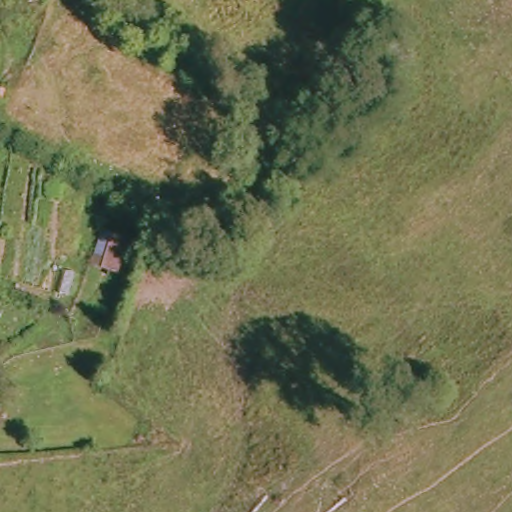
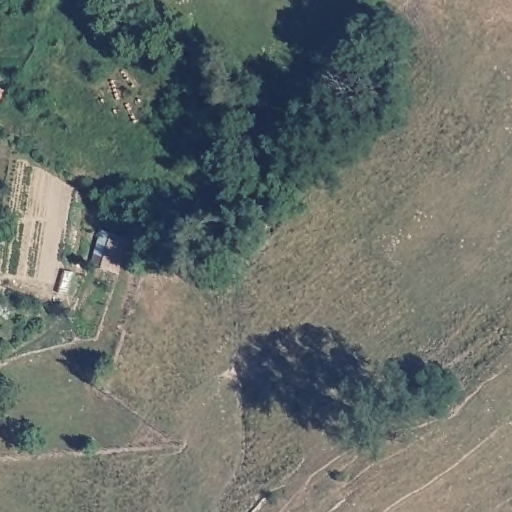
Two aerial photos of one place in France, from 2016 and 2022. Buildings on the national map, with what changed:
unchanged [(128,241),(118,275),(88,266),(98,232),(128,241)]

